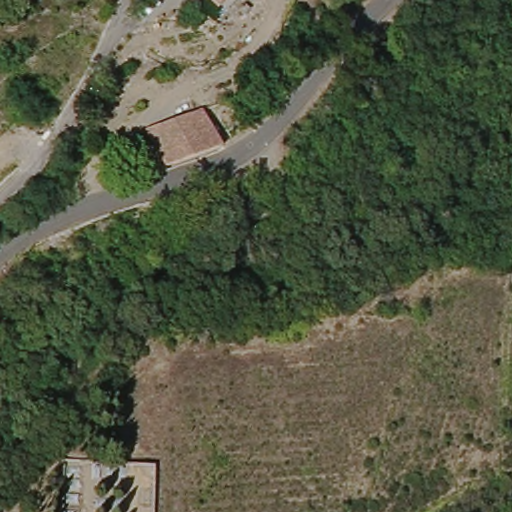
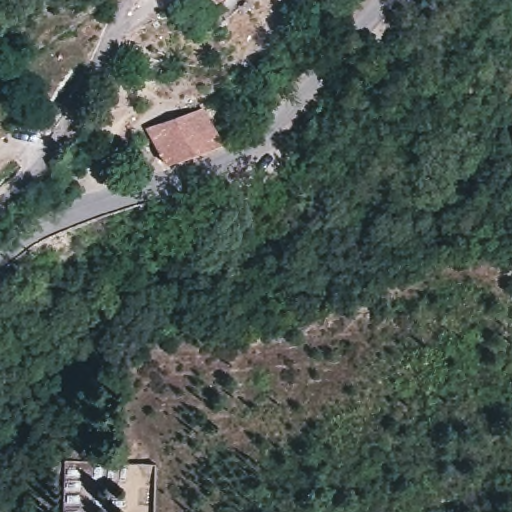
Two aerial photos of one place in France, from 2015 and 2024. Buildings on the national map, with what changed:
unchanged [(218,0),(225,0),(221,3),(218,0)]
unchanged [(227,0),(232,0),(230,2),(227,0)]
unchanged [(214,141),(161,163),(151,139),(148,133),(198,111),(214,141)]

